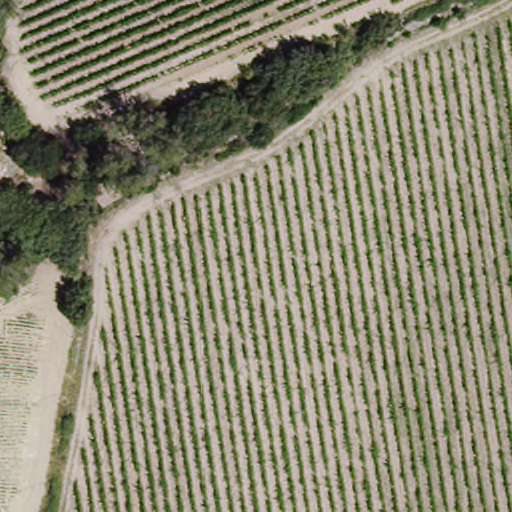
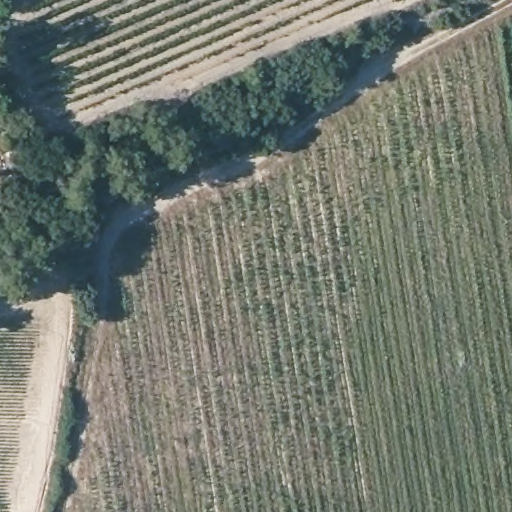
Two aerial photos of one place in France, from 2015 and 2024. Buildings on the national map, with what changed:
unchanged [(134,185),(98,205),(84,180),(119,160),(134,185)]

